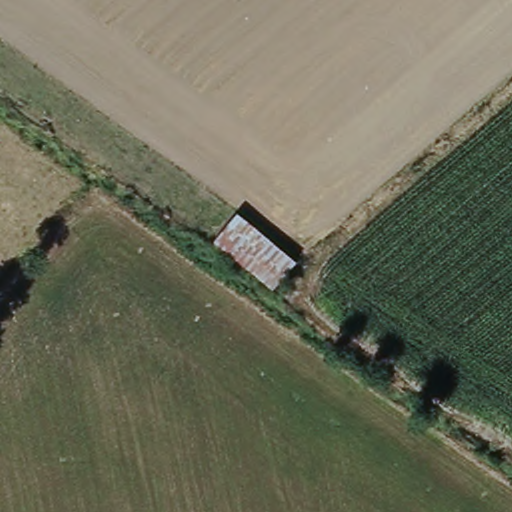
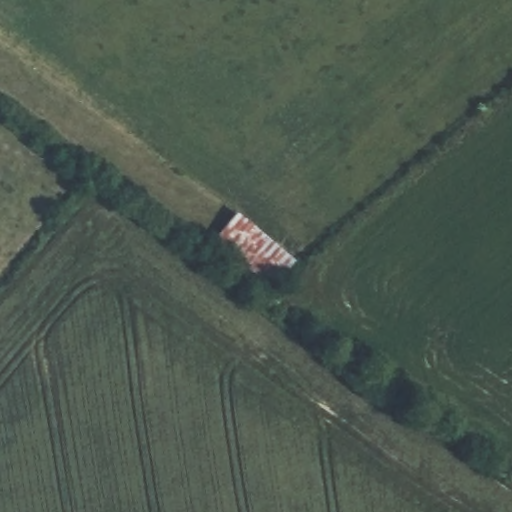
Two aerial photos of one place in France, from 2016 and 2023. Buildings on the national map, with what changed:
unchanged [(292,257),(267,284),(216,244),(240,212),(292,257)]

